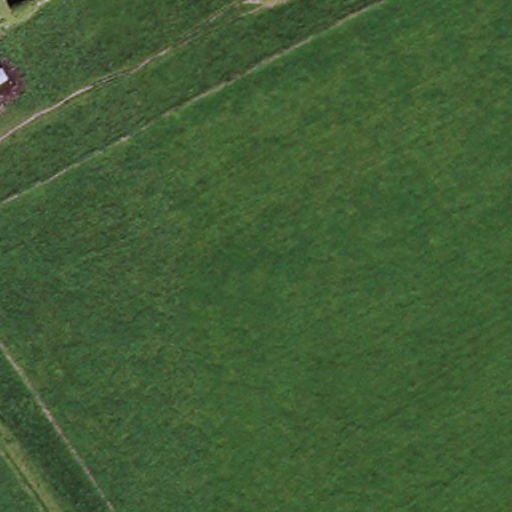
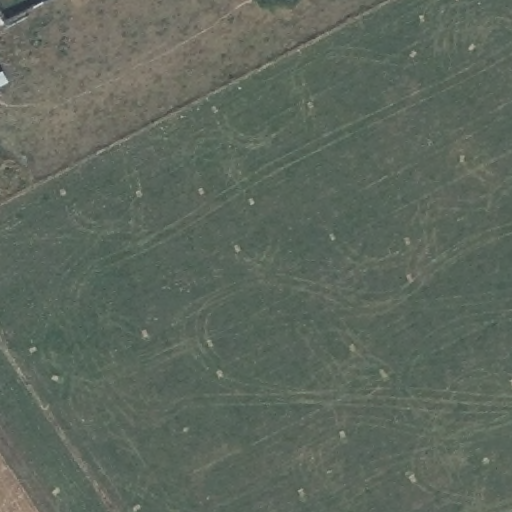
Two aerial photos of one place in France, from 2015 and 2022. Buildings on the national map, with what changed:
unchanged [(0,28),(0,13),(6,24),(0,28)]

